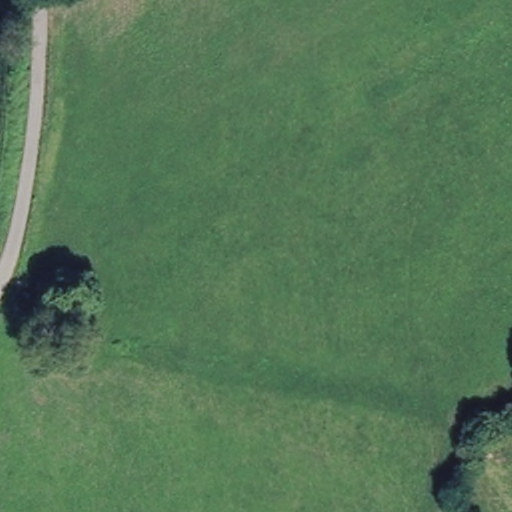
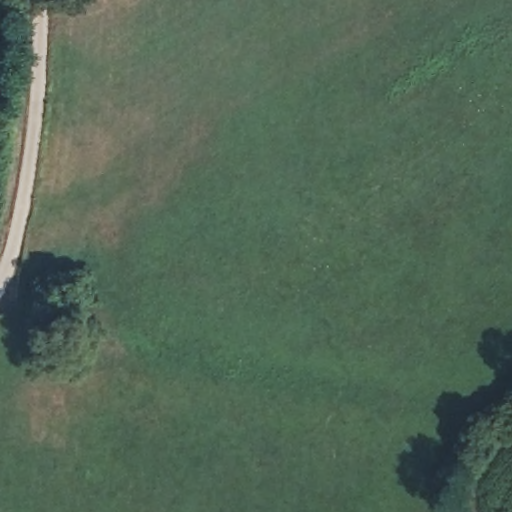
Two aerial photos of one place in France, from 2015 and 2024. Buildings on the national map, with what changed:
[]

